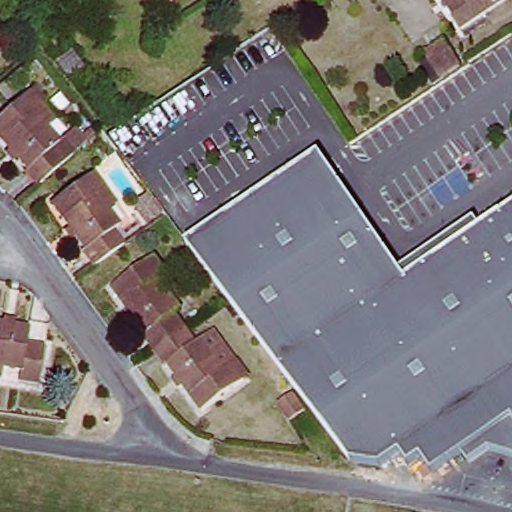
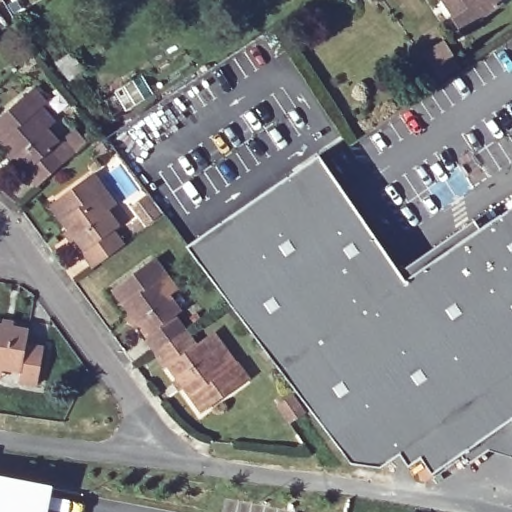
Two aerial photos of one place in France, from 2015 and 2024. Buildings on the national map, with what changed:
unchanged [(348,5),(346,3),(345,1),(345,0),(357,0),(356,3),(355,5),(351,6),(348,5)]
unchanged [(506,9),(463,38),(453,22),(457,19),(444,0),(501,0),(506,9)]
unchanged [(443,42),(460,66),(440,79),(424,55),(443,42)]
unchanged [(70,82),(55,62),(71,50),(87,69),(70,82)]
unchanged [(30,172),(0,134),(0,120),(27,98),(31,95),(56,126),(48,132),(60,148),(56,150),(67,165),(40,188),(28,174),(30,172)]
unchanged [(84,145),(71,130),(65,121),(76,111),(83,120),(95,135),(84,145)]
unchanged [(231,305),(193,255),(195,254),(190,248),(326,157),(330,162),(411,282),(500,225),(512,217),(512,365),(370,464),(350,462),(297,389),(231,305)]
unchanged [(114,233),(125,248),(95,269),(84,252),(86,251),(55,206),(92,179),(95,176),(117,208),(110,214),(120,230),(114,233)]
unchanged [(160,211),(146,221),(137,207),(151,197),(160,211)]
unchanged [(176,319),(187,333),(155,356),(145,340),(148,337),(115,290),(152,264),(157,261),(179,294),(171,299),(182,315),(176,319)]
unchanged [(0,379),(0,327),(31,332),(28,346),(45,349),(39,385),(20,381),(22,372),(4,369),(2,380),(0,379)]
unchanged [(197,348),(205,343),(216,358),(223,353),(246,384),(241,387),(204,414),(172,369),(167,372),(155,356),(187,333),(197,348)]
unchanged [(469,464),(462,455),(432,473),(422,457),(410,465),(402,453),(382,465),(370,464),(512,365),(512,457),(492,452),(469,464)]
unchanged [(296,400),(309,417),(296,426),(283,409),(296,400)]
new [(54,486),(48,512),(0,512),(0,476),(54,486)]

